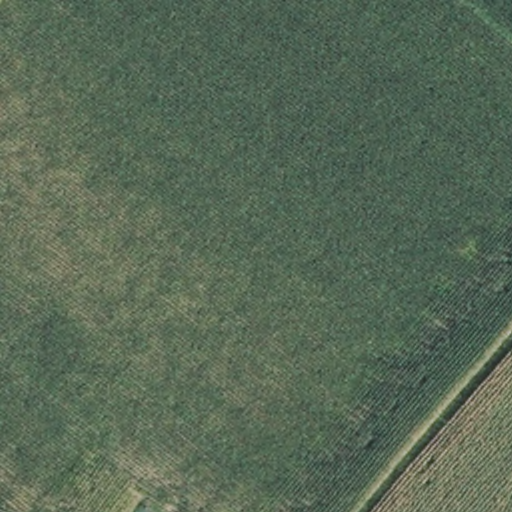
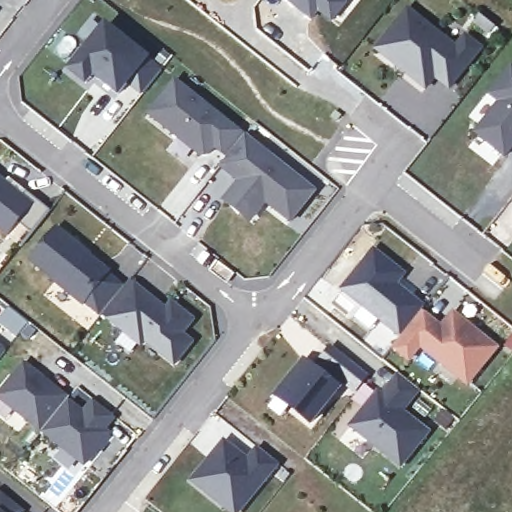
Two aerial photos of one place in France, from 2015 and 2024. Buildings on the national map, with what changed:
new [(331,22),(318,13),(311,21),(286,0),(347,0),(348,1),(331,22)]
new [(404,72),(376,49),(407,10),(456,49),(465,37),(481,49),(449,89),(435,77),(426,89),(404,72)]
new [(106,27),(162,71),(143,95),(128,83),(118,95),(93,75),(86,83),(71,71),(78,62),(106,27)]
new [(490,95),(512,68),(512,148),(505,157),(476,133),(500,102),(490,95)]
new [(175,81),(244,137),(227,158),(214,147),(208,155),(200,156),(149,115),(175,81)]
new [(239,182),(233,177),(220,167),(225,160),(227,158),(244,137),(314,192),(290,222),(265,202),(259,210),(250,222),(224,201),(233,190),(239,182)]
new [(7,237),(0,231),(0,180),(22,197),(26,192),(50,212),(31,235),(21,248),(7,237)]
new [(56,230),(81,250),(80,251),(109,273),(107,275),(123,288),(102,315),(101,316),(85,302),(83,305),(55,282),(56,281),(31,261),(56,230)]
new [(497,348),(468,385),(425,350),(420,347),(409,361),(393,347),(401,337),(343,290),(374,251),(404,275),(395,286),(424,308),(421,312),(441,329),(453,314),(497,348)]
new [(123,288),(129,281),(166,311),(171,303),(193,321),(182,335),(192,343),(174,365),(145,342),(141,346),(102,315),(123,288)]
new [(8,307),(28,323),(16,338),(0,325),(0,317),(8,307)]
new [(315,371),(333,347),(357,367),(369,377),(357,392),(345,382),(339,390),(311,423),(278,397),(306,363),(315,371)]
new [(3,351),(0,354),(0,348),(3,351)]
new [(25,365),(68,399),(67,401),(42,432),(0,399),(0,396),(25,365)]
new [(382,396),(399,375),(419,391),(403,412),(429,433),(401,467),(351,427),(378,392),(382,396)]
new [(67,401),(84,413),(94,401),(115,417),(105,431),(109,434),(85,466),(42,432),(67,401)]
new [(224,441),(248,460),(258,447),(279,464),(240,512),(229,512),(191,482),(224,441)]
new [(23,510),(21,512),(0,512),(0,492),(23,510)]

